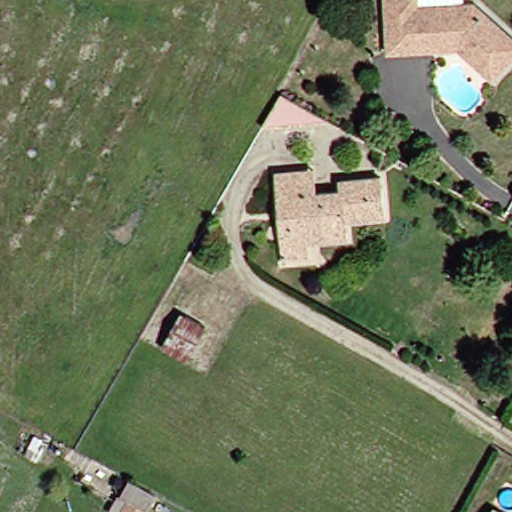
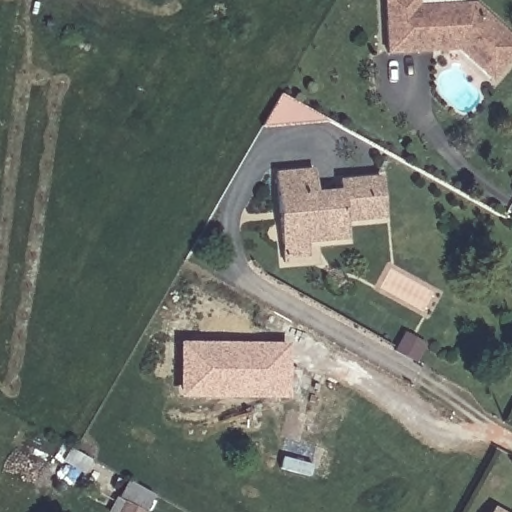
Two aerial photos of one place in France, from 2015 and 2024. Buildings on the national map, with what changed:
unchanged [(450,45),(454,41),(449,32),(411,34),(412,47),(379,49),(378,16),(388,15),(388,0),(461,0),(461,1),(467,1),(512,41),(512,45),(483,76),(450,45)]
unchanged [(262,125),(281,92),(328,117),(262,125)]
unchanged [(274,257),(273,245),(266,172),(298,170),(303,169),(306,192),(331,190),(330,180),(370,176),(373,218),(336,221),(338,239),(295,242),(297,255),(274,257)]
new [(178,342),(290,343),(288,400),(178,398),(178,342)]
unchanged [(126,512),(120,508),(130,490),(148,500),(142,512),(126,512)]
unchanged [(481,512),(483,507),(493,512),(481,512)]

